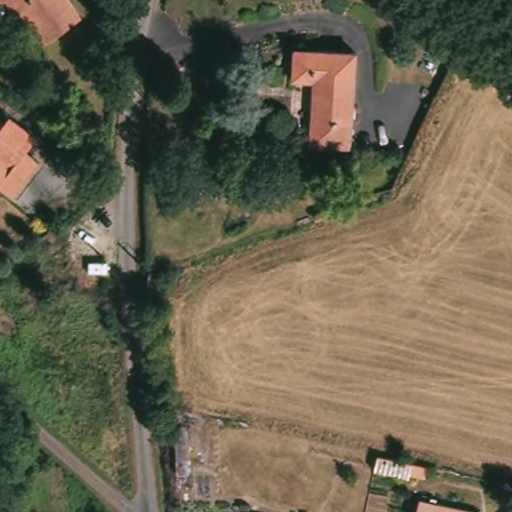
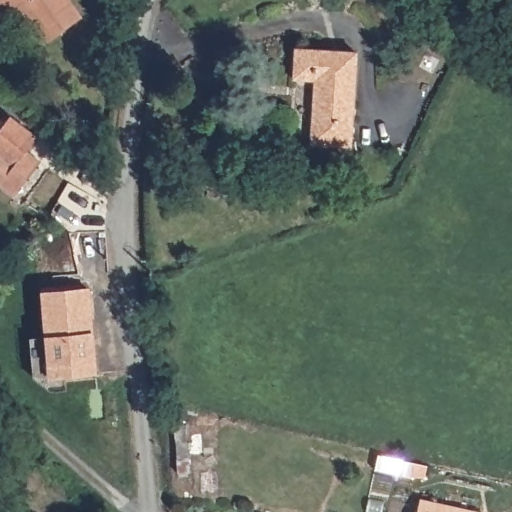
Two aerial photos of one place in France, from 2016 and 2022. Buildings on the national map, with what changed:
unchanged [(65,0),(77,19),(39,45),(15,9),(10,12),(0,19),(0,0),(65,0)]
unchanged [(357,55),(352,150),(313,148),(316,85),(295,84),(297,52),(357,55)]
unchanged [(16,195),(0,183),(0,128),(1,129),(11,117),(37,137),(27,150),(41,160),(31,173),(24,183),(16,195)]
new [(90,293),(97,378),(50,382),(44,296),(90,293)]
unchanged [(419,501),(468,512),(417,512),(419,501)]

